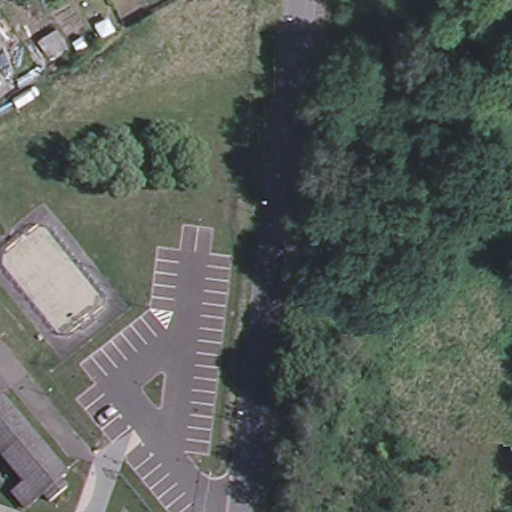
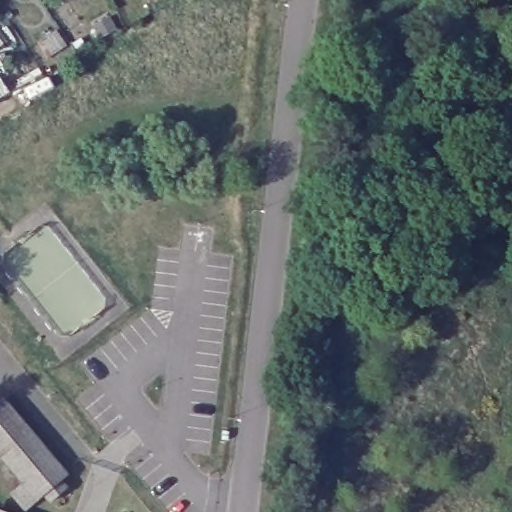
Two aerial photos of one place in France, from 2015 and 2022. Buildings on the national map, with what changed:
unchanged [(65,474),(60,479),(67,486),(50,502),(43,494),(25,510),(13,496),(26,485),(0,455),(0,401),(2,399),(65,474)]

